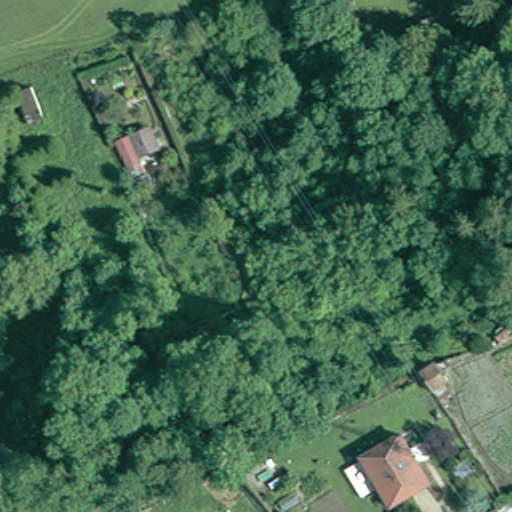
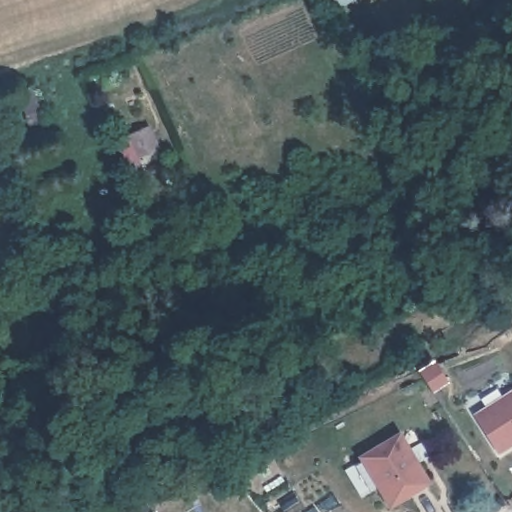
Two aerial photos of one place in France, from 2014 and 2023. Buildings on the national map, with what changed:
unchanged [(25,93),(38,121),(22,126),(10,95),(24,90),(25,93)]
unchanged [(164,151),(130,162),(120,133),(153,122),(164,151)]
unchanged [(512,254),(505,242),(512,238),(512,254)]
unchanged [(487,345),(504,336),(507,340),(488,349),(487,345)]
unchanged [(283,339),(290,355),(270,364),(264,349),(283,339)]
unchanged [(427,367),(440,387),(427,394),(421,385),(417,379),(415,373),(427,367)]
new [(473,414),(512,389),(512,445),(498,454),(473,414)]
unchanged [(103,411),(141,396),(144,405),(126,412),(129,419),(110,426),(103,411)]
unchanged [(210,447),(203,431),(217,424),(225,441),(210,447)]
unchanged [(393,502),(388,494),(363,451),(400,429),(425,470),(431,479),(393,502)]

